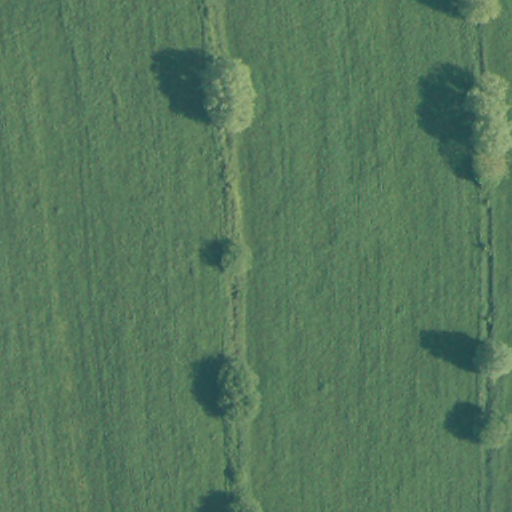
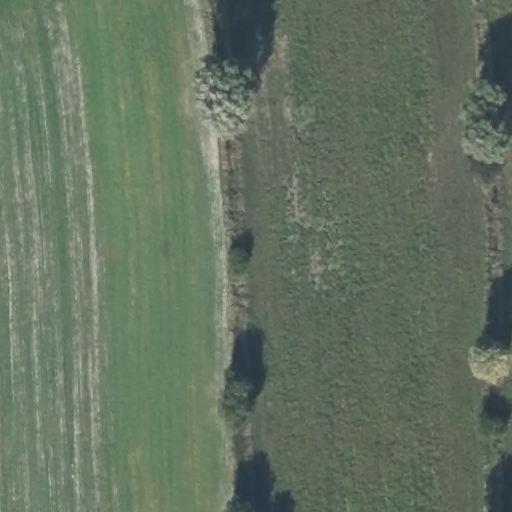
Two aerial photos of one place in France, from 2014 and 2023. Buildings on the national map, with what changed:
[]

